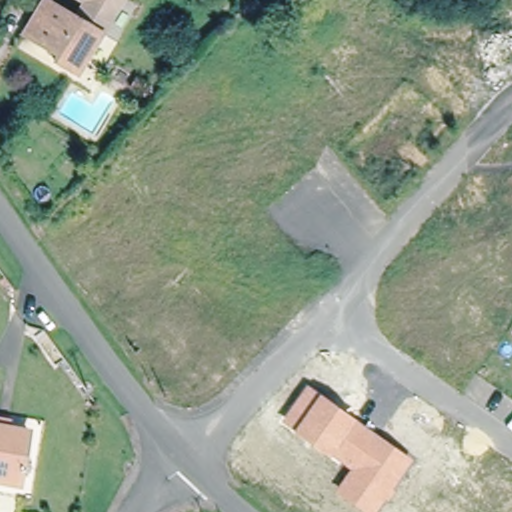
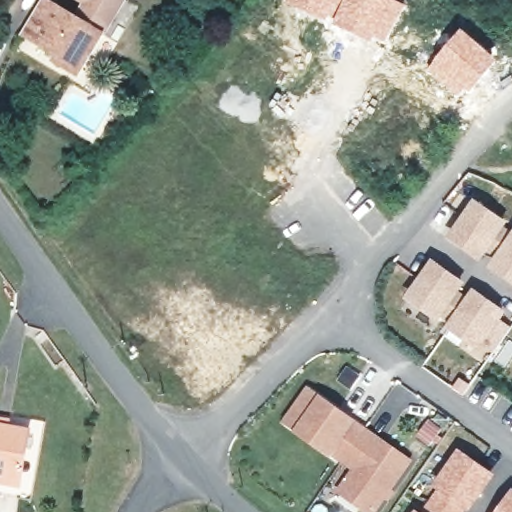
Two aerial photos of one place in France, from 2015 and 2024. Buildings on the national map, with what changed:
unchanged [(77,20),(88,4),(83,0),(125,0),(76,72),(27,36),(52,2),(77,20)]
new [(287,0),(399,0),(406,3),(385,45),(354,34),(285,3),(287,0)]
new [(462,28),(498,60),(469,94),(466,92),(460,98),(426,70),(462,28)]
unchanged [(126,78),(139,87),(131,96),(119,87),(126,78)]
new [(509,220),(481,261),(447,238),(474,199),(509,220)]
new [(512,232),(512,283),(488,268),(512,232)]
new [(458,291),(467,296),(473,289),(507,312),(501,321),(512,328),(512,329),(494,352),(485,345),(481,350),(446,328),(452,319),(445,316),(440,323),(405,299),(433,260),(465,282),(458,291)]
unchanged [(356,420),(413,461),(393,490),(395,492),(389,502),(385,500),(375,512),(365,512),(336,491),(350,469),(331,454),(329,457),(293,430),(281,421),(306,385),(320,394),(356,420)]
unchanged [(31,422),(21,473),(0,468),(0,416),(31,422)]
new [(468,512),(421,512),(439,488),(433,485),(459,447),(496,473),(468,512)]
new [(512,512),(496,512),(512,489),(512,512)]
new [(419,512),(413,512),(415,510),(419,512)]

